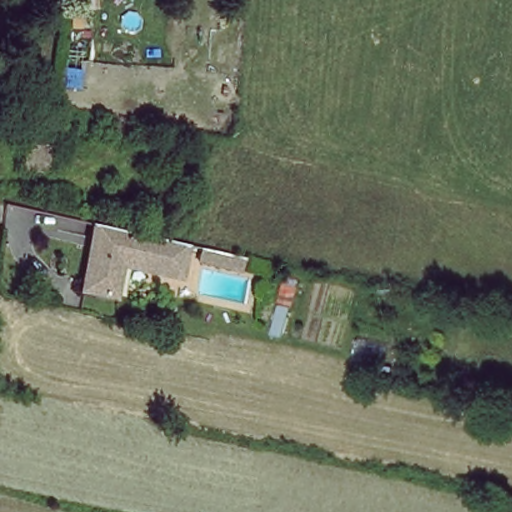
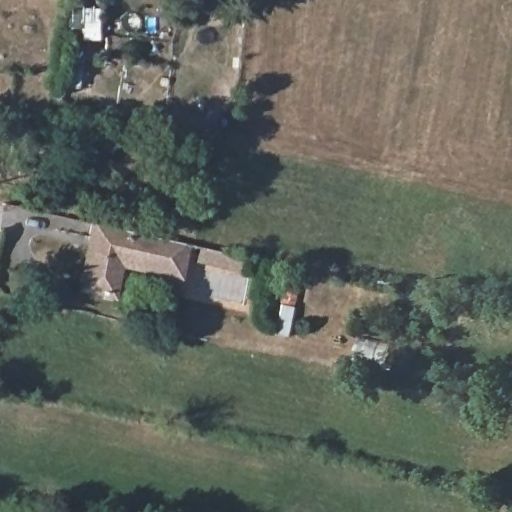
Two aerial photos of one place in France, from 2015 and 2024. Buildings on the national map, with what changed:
unchanged [(40,171),(23,170),(25,150),(42,152),(40,171)]
unchanged [(184,242),(190,244),(182,276),(122,263),(115,296),(82,289),(97,223),(109,225),(165,238),(184,242)]
unchanged [(244,269),(203,259),(205,247),(243,255),(247,256),(244,269)]
unchanged [(301,292),(294,318),(282,315),(288,289),(301,292)]

